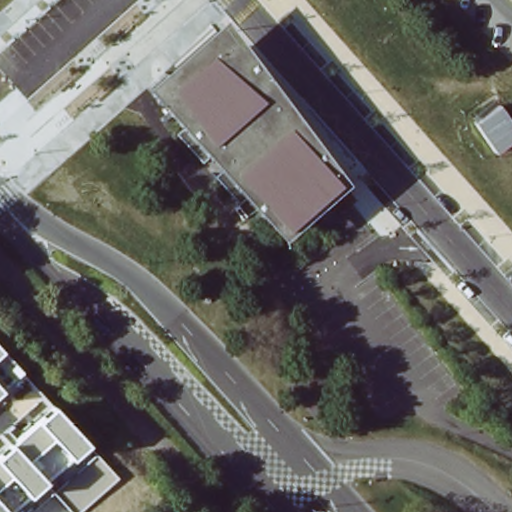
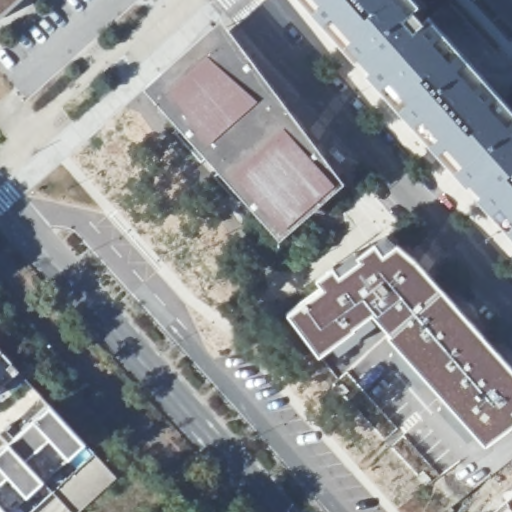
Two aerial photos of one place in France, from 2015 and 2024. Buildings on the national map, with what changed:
new [(0,16),(0,0),(19,0),(0,16)]
new [(449,39),(445,44),(455,56),(461,51),(475,68),(469,74),(479,85),(485,79),(502,100),(497,105),(512,121),(512,248),(449,175),(452,172),(442,160),(437,163),(425,149),(429,146),(417,133),(415,135),(397,115),(399,113),(366,77),(371,73),(361,62),(355,68),(344,56),(347,53),(324,28),(321,30),(310,19),(313,17),(298,0),(414,0),(449,39)]
unchanged [(215,28),(239,59),(242,64),(195,105),(166,73),(215,28)]
unchanged [(213,175),(220,170),(208,156),(201,162),(177,135),(183,129),(147,90),(166,73),(195,105),(242,64),(250,57),(304,129),(327,159),(282,201),(293,214),(275,230),(246,199),(239,205),(213,175)]
new [(322,289),(320,284),(336,272),(341,280),(363,263),(359,259),(376,246),(386,258),(400,247),(512,371),(512,433),(488,451),(390,340),(393,338),(375,318),(356,332),(356,334),(320,361),(287,314),(322,289)]
unchanged [(0,389),(0,346),(21,370),(0,389)]
unchanged [(88,443),(12,512),(0,512),(0,452),(52,404),(88,443)]

